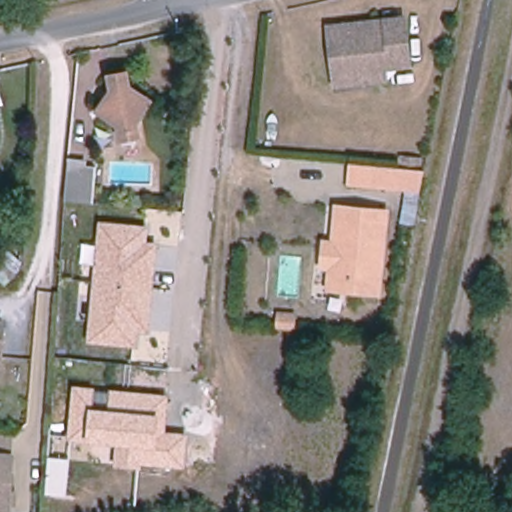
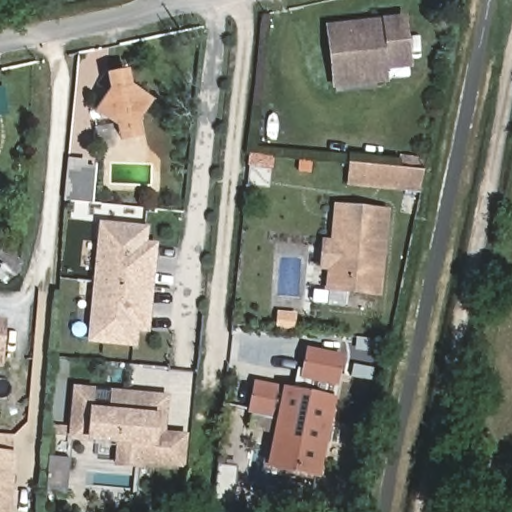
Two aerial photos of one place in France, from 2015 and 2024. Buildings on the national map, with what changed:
unchanged [(410,66),(386,69),(387,81),(336,86),(329,28),(353,25),(358,30),(365,29),(369,23),(405,19),(410,66)]
unchanged [(151,101),(130,133),(99,112),(120,80),(151,101)]
unchanged [(69,201),(73,163),(87,164),(86,170),(96,171),(93,204),(69,201)]
unchanged [(420,171),(416,191),(343,184),(345,164),(420,171)]
unchanged [(328,286),(330,265),(322,264),(324,239),(333,239),(337,203),(351,205),(387,208),(379,291),(328,286)]
unchanged [(136,347),(86,342),(98,222),(147,226),(146,242),(156,243),(150,333),(138,332),(136,347)]
unchanged [(0,322),(3,322),(0,353),(0,322)]
new [(275,420),(247,413),(254,380),(282,386),(293,389),(297,367),(301,368),(306,346),(344,354),(335,398),(320,478),(266,467),(275,420)]
unchanged [(168,395),(165,432),(188,433),(185,468),(141,465),(141,469),(113,467),(116,444),(86,442),(68,441),(72,387),(94,388),(93,408),(109,409),(110,389),(168,395)]
unchanged [(0,450),(14,451),(10,512),(0,512),(0,450)]
new [(44,458),(66,461),(63,495),(42,493),(44,458)]
new [(235,507),(215,505),(219,465),(239,467),(235,507)]

